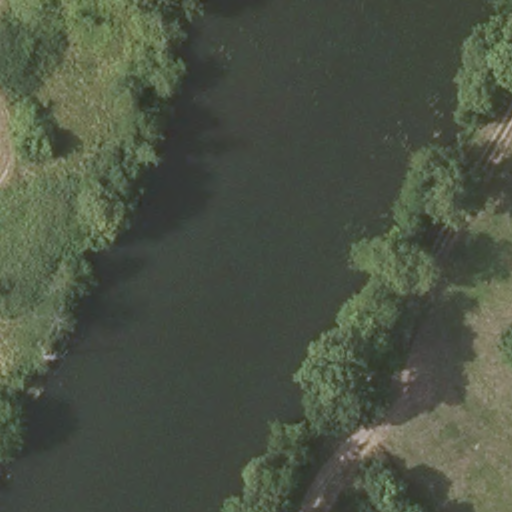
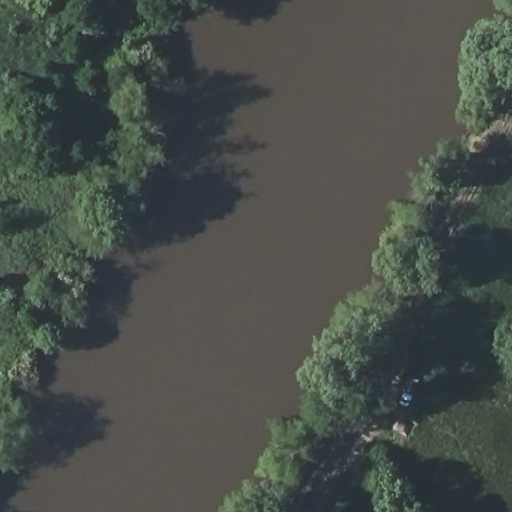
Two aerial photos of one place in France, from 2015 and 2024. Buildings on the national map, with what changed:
unchanged [(347,396),(356,402),(349,413),(342,404),(347,396)]

